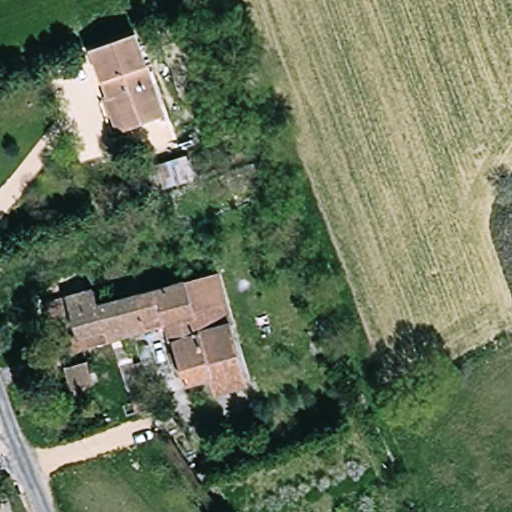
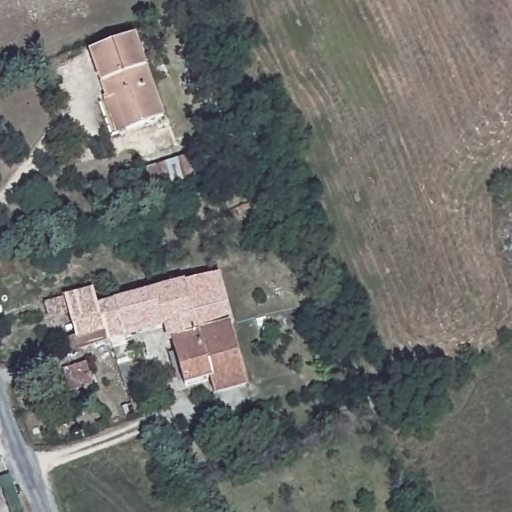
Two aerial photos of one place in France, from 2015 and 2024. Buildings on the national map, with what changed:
unchanged [(109,103),(91,53),(135,37),(165,119),(130,132),(121,135),(109,103)]
unchanged [(214,271),(246,379),(216,388),(213,378),(191,385),(177,339),(182,338),(177,322),(128,340),(115,298),(172,282),(214,271)]
unchanged [(150,393),(147,395),(152,412),(142,416),(119,340),(114,341),(111,330),(82,339),(73,310),(52,316),(47,300),(68,293),(93,285),(97,303),(115,298),(128,340),(137,367),(142,365),(150,393)]
unchanged [(97,390),(84,393),(85,401),(77,403),(68,375),(92,367),(97,390)]

